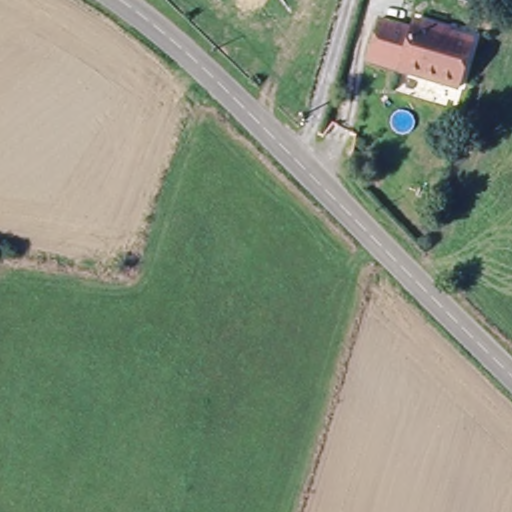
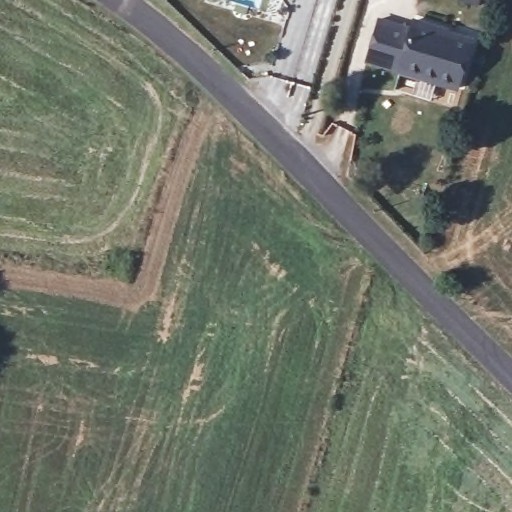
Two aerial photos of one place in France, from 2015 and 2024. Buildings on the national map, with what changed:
unchanged [(414,23),(448,35),(446,39),(468,47),(453,90),(369,61),(381,21),(412,32),(414,23)]

